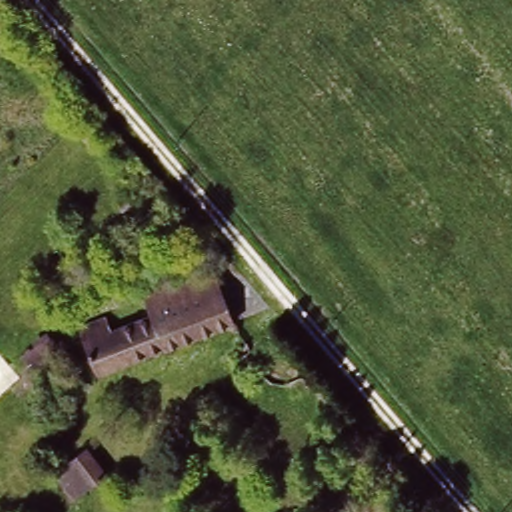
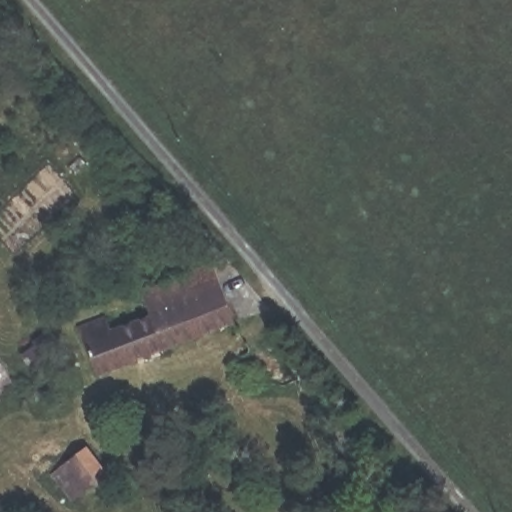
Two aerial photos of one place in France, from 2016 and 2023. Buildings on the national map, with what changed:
unchanged [(76,324),(103,315),(110,335),(142,322),(151,318),(147,306),(142,293),(176,278),(199,270),(215,265),(225,293),(232,312),(236,324),(195,338),(94,375),(76,324)]
unchanged [(85,452),(102,475),(65,497),(50,475),(85,452)]

